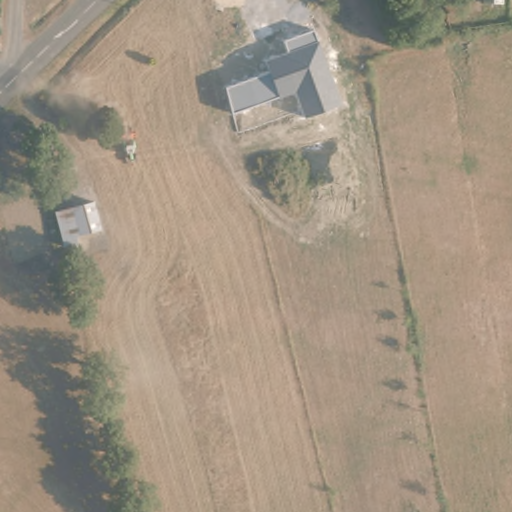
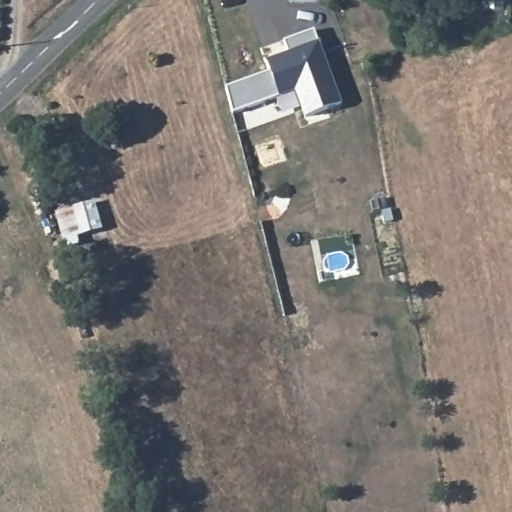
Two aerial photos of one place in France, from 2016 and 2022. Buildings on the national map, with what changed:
unchanged [(410,17),(413,19),(414,20),(417,22),(419,25),(419,27),(421,30),(421,32),(424,41),(406,46),(396,17),(398,17),(400,16),(403,16),(404,16),(408,17),(410,17)]
unchanged [(224,88),(269,72),(264,60),(288,54),(282,41),(312,31),(341,104),(304,117),(295,93),(230,114),(224,88)]
unchanged [(56,211),(93,199),(99,234),(63,244),(56,211)]

